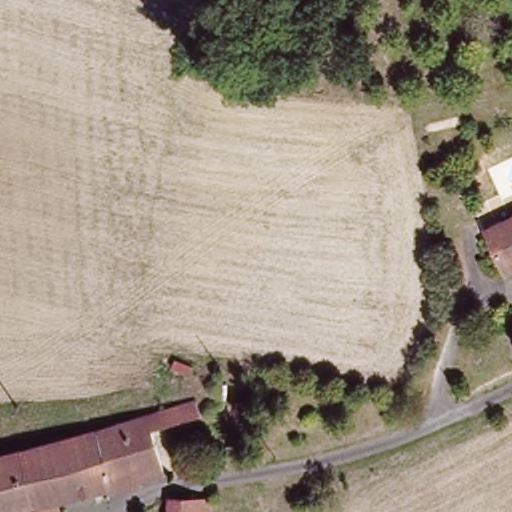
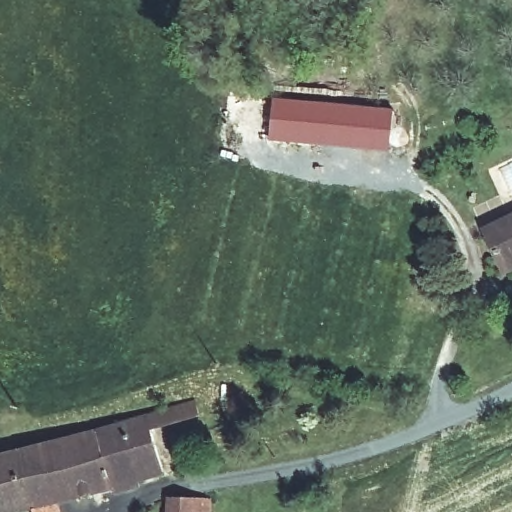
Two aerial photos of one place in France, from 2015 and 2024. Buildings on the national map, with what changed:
new [(392,153),(272,140),(275,98),(395,110),(392,153)]
unchanged [(510,274),(487,229),(512,216),(512,273),(510,274)]
unchanged [(185,431),(162,435),(171,478),(67,500),(34,508),(22,456),(104,435),(180,415),(185,431)]
unchanged [(0,512),(0,460),(22,456),(34,508),(13,512),(0,512)]
unchanged [(67,500),(69,512),(34,512),(34,508),(67,500)]
unchanged [(195,504),(194,512),(170,512),(172,502),(195,504)]
unchanged [(220,505),(219,512),(194,512),(195,504),(220,505)]

